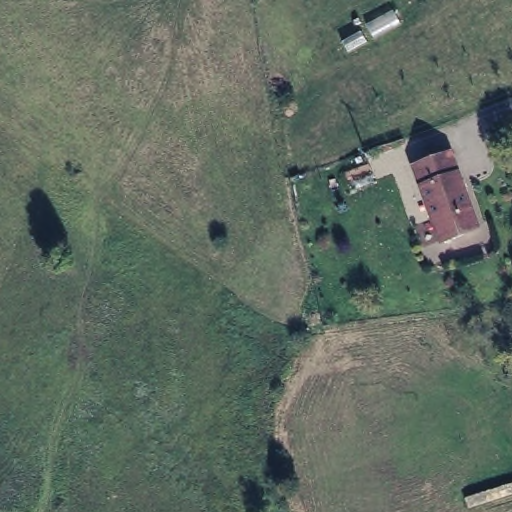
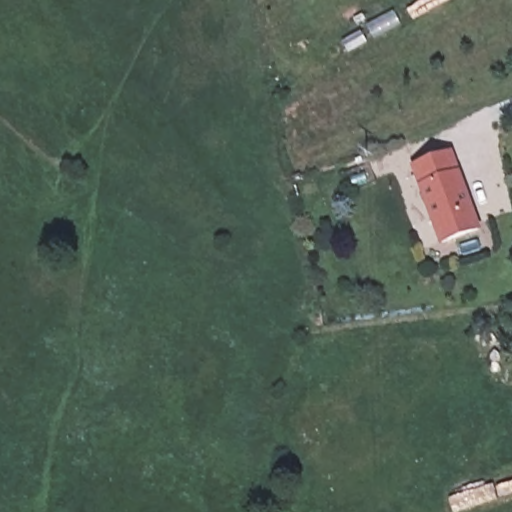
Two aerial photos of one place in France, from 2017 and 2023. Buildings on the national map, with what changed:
unchanged [(441,244),(419,165),(455,152),(481,230),(441,244)]

